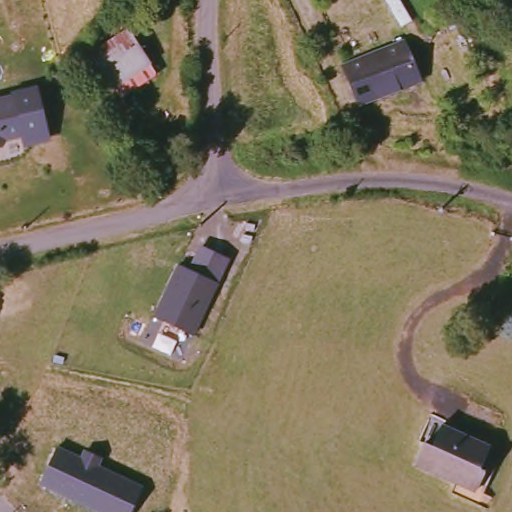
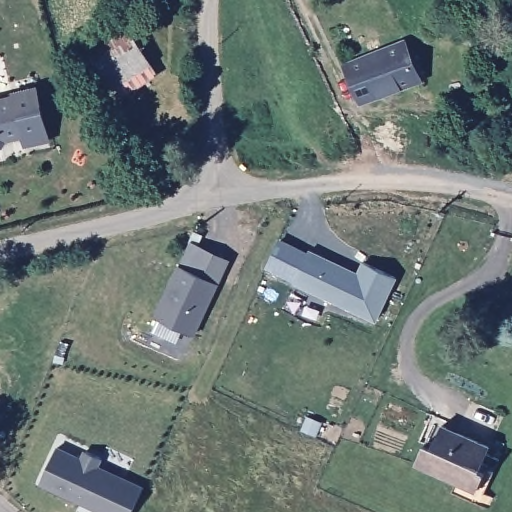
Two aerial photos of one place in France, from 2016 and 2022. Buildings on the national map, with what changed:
unchanged [(151,71),(112,93),(87,50),(126,26),(151,71)]
unchanged [(365,102),(347,64),(407,39),(411,37),(427,79),(365,102)]
unchanged [(50,141),(24,147),(22,136),(26,135),(17,96),(13,98),(12,91),(39,86),(50,141)]
unchanged [(26,135),(9,139),(5,145),(0,146),(0,100),(17,96),(26,135)]
unchanged [(219,283),(187,269),(197,245),(229,260),(219,283)]
new [(379,323),(295,283),(311,250),(357,272),(362,261),(397,277),(379,323)]
unchanged [(155,317),(179,266),(222,285),(197,338),(155,317)]
unchanged [(447,482),(452,472),(412,453),(422,433),(428,436),(437,417),(482,438),(480,443),(486,446),(494,450),(479,482),(487,486),(481,498),(465,490),(447,482)]
unchanged [(80,455),(82,450),(102,457),(101,465),(144,485),(132,512),(99,512),(40,486),(57,447),(80,455)]

